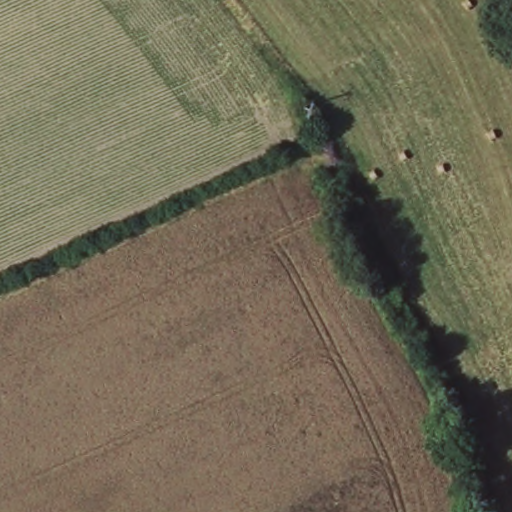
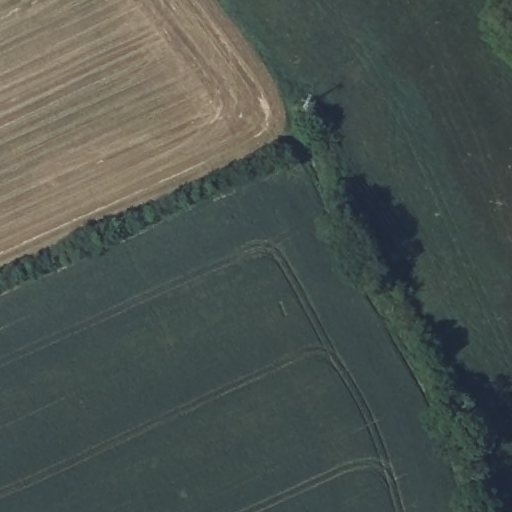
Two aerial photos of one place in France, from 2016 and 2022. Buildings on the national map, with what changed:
[]

